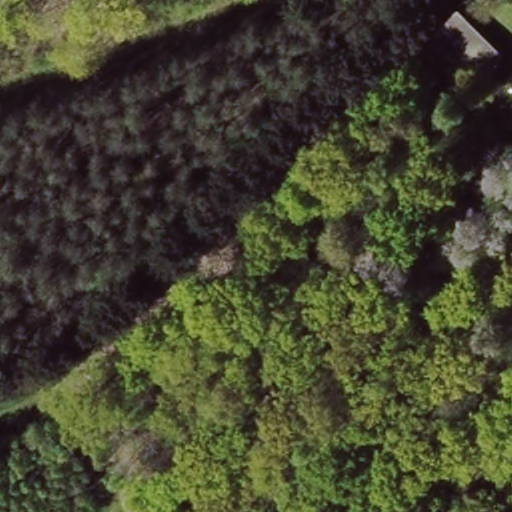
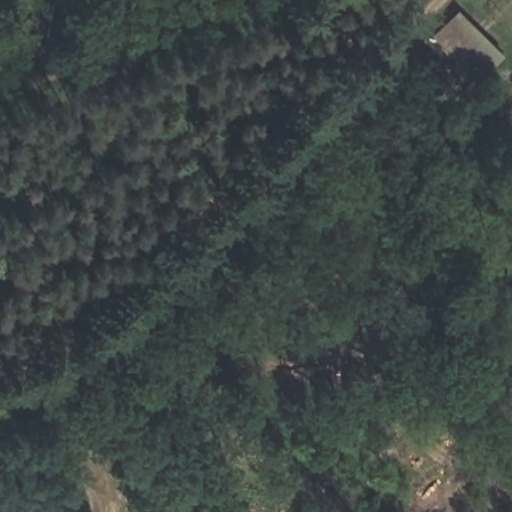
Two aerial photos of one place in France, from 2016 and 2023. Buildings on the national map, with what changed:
unchanged [(510,52),(487,72),(443,32),(468,11),(510,52)]

